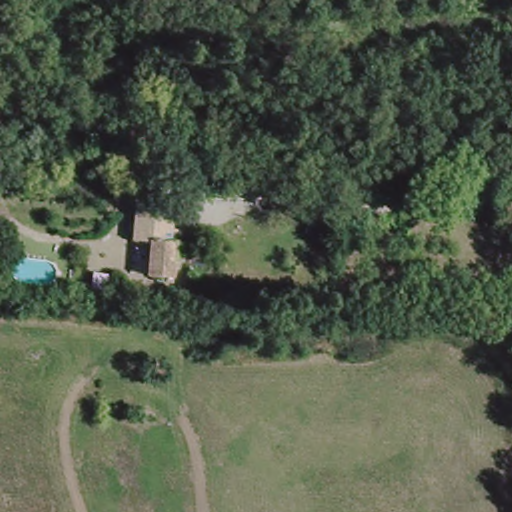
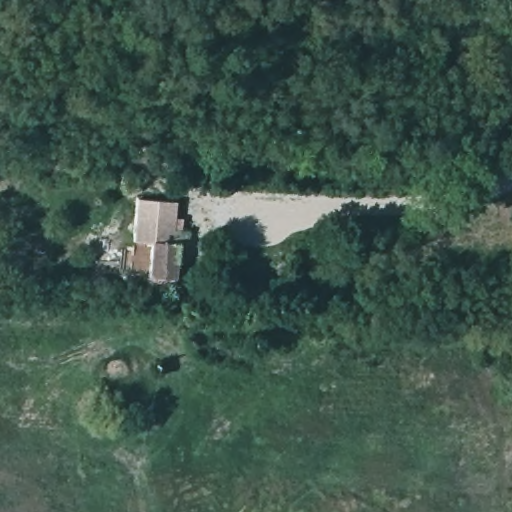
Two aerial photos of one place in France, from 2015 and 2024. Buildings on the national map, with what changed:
unchanged [(175,245),(183,246),(180,277),(151,276),(154,243),(145,242),(148,212),(177,214),(175,245)]

